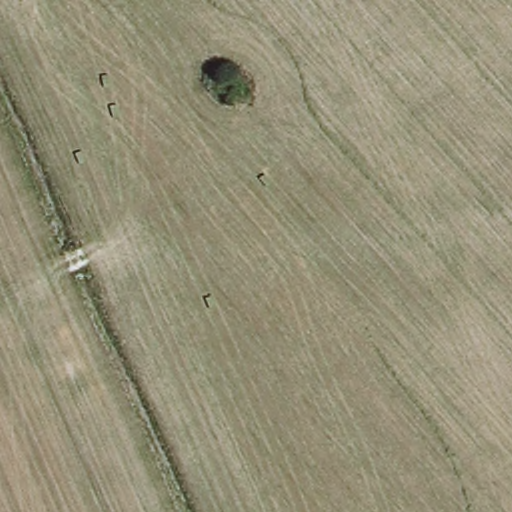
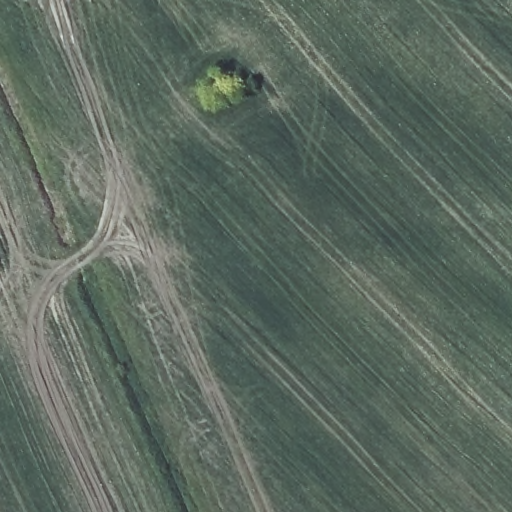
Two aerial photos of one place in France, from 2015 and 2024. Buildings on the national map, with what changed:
unchanged [(230,75),(265,82),(260,107),(225,99),(230,75)]

